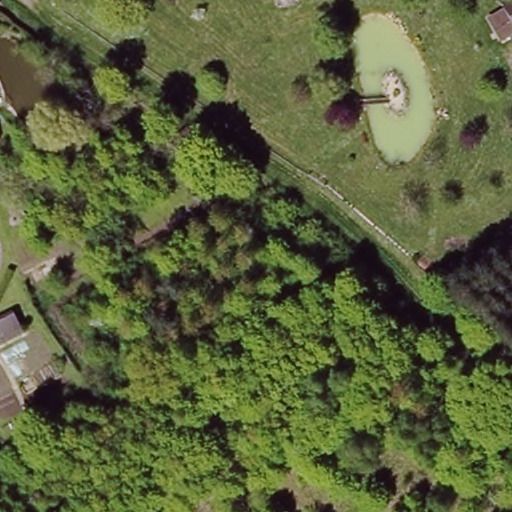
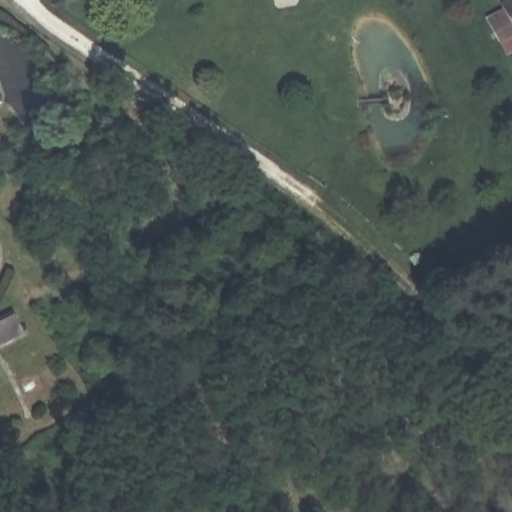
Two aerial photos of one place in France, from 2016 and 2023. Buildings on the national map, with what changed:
unchanged [(506,0),(512,0),(512,29),(499,4),(506,0)]
unchanged [(21,327),(0,337),(0,318),(14,311),(21,327)]

